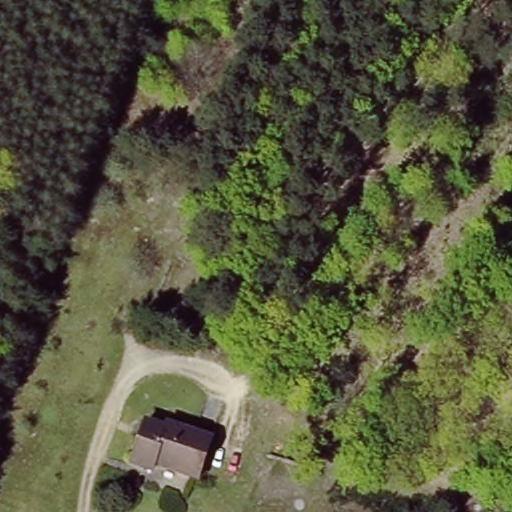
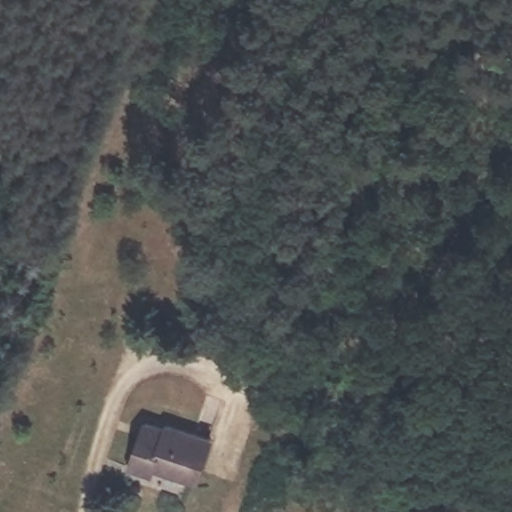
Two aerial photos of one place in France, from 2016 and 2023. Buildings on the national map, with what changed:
unchanged [(140,419),(160,426),(162,420),(203,436),(188,476),(147,462),(141,467),(123,461),(140,419)]

